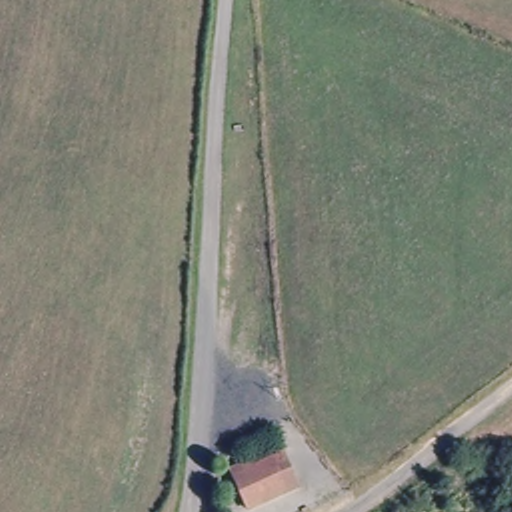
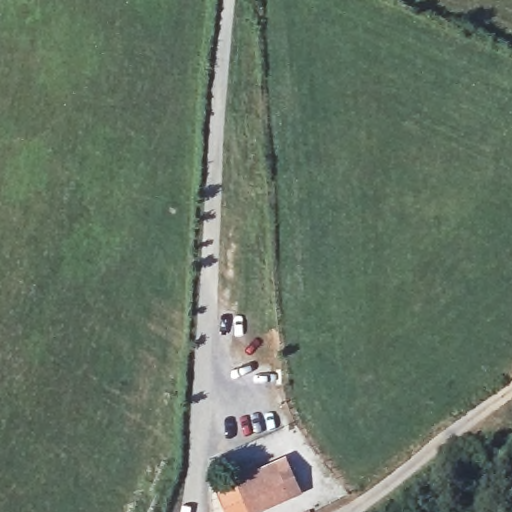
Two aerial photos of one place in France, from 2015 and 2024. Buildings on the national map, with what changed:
unchanged [(284,441),(292,461),(284,466),(294,490),(254,512),(249,512),(227,468),(284,441)]

